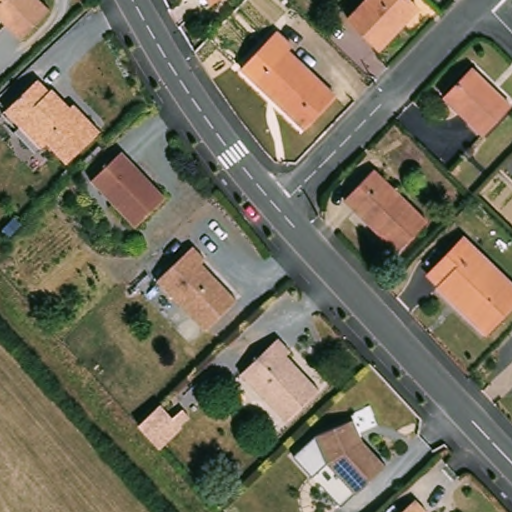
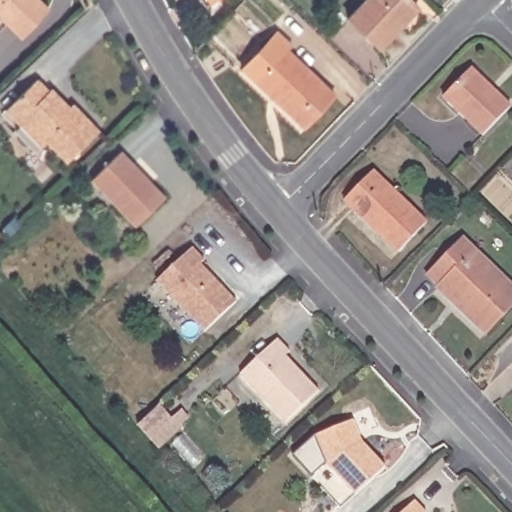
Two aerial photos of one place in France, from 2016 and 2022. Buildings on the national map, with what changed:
unchanged [(51,8),(23,36),(8,22),(0,30),(0,0),(44,0),(51,8)]
unchanged [(210,5),(206,0),(217,0),(210,5)]
unchanged [(366,0),(412,0),(419,7),(379,48),(348,18),(366,0)]
unchanged [(279,30),(295,46),(290,51),(335,96),(304,127),(243,67),(279,30)]
unchanged [(474,66),(512,101),(512,107),(486,133),(446,94),(474,66)]
unchanged [(67,162),(47,141),(42,146),(8,110),(40,79),(52,91),(55,88),(72,107),(76,104),(83,112),(101,131),(67,162)]
unchanged [(127,152),(170,197),(139,226),(96,181),(127,152)]
unchanged [(375,167),(429,220),(401,250),(347,197),(375,167)]
unchanged [(512,279),(512,309),(488,333),(441,289),(442,288),(430,276),(467,237),(512,279)]
unchanged [(194,244),(206,257),(202,260),(238,298),(206,328),(158,277),(194,244)]
unchanged [(280,337),(292,350),(288,353),(321,389),(287,419),(243,371),(280,337)]
unchanged [(367,442),(389,468),(358,495),(329,461),(318,439),(357,422),(364,435),(362,440),(364,443),(367,442)]
unchanged [(430,510),(427,512),(402,512),(418,497),(430,510)]

